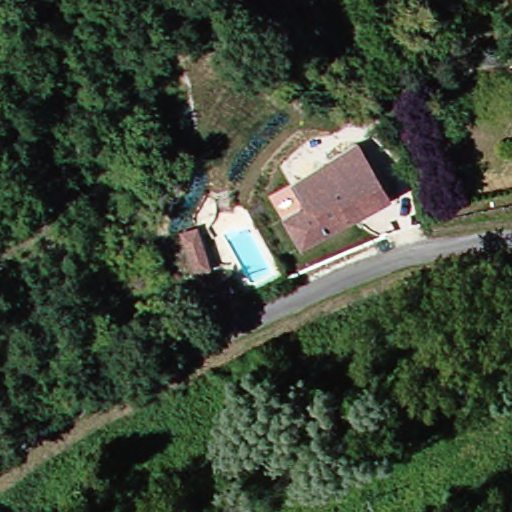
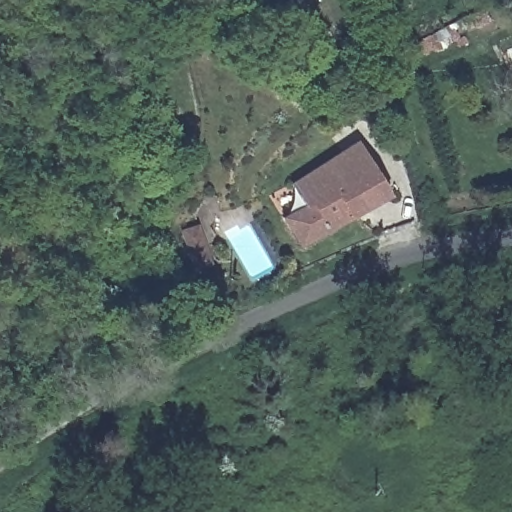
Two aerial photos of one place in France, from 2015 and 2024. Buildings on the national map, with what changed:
unchanged [(367,139),(399,191),(344,222),(314,172),(367,139)]
unchanged [(344,222),(289,253),(271,220),(296,206),(285,189),(314,172),(344,222)]

